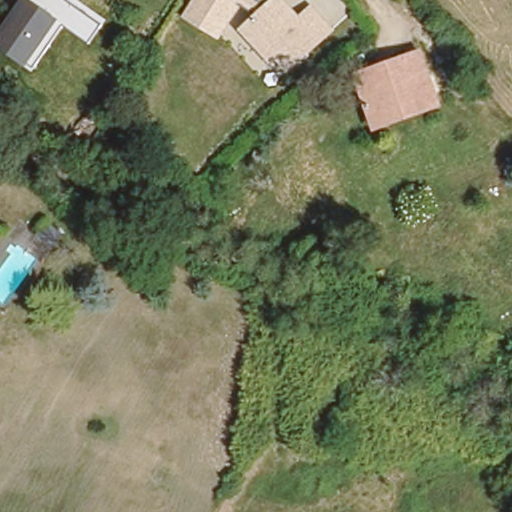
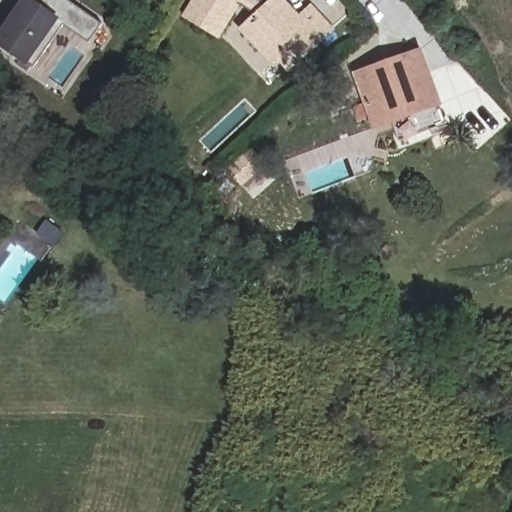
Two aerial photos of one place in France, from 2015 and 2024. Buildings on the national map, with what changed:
unchanged [(65,26),(35,68),(0,47),(0,28),(20,0),(68,0),(103,25),(90,44),(65,26)]
unchanged [(272,0),(288,0),(301,15),(313,5),(335,32),(285,75),(241,27),(255,14),(240,3),(221,38),(185,17),(195,0),(267,0),(270,2),(272,0)]
unchanged [(410,47),(433,99),(374,125),(351,74),(410,47)]

